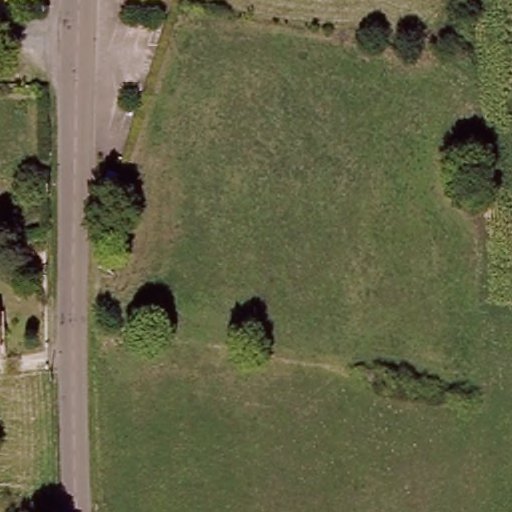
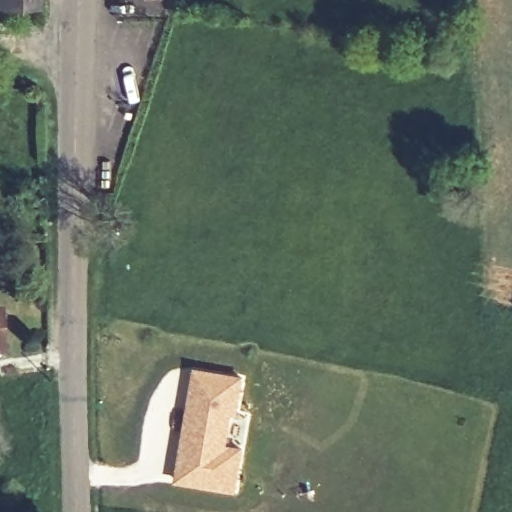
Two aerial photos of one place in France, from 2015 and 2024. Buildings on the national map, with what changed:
unchanged [(38,2),(5,2),(4,0),(38,0),(38,2)]
unchanged [(164,2),(131,1),(131,0),(164,0),(164,2)]
unchanged [(7,316),(6,358),(0,359),(0,316),(7,316)]
new [(197,370),(244,378),(238,412),(234,411),(229,447),(243,449),(238,490),(179,481),(183,458),(187,459),(197,406),(191,405),(197,370)]

